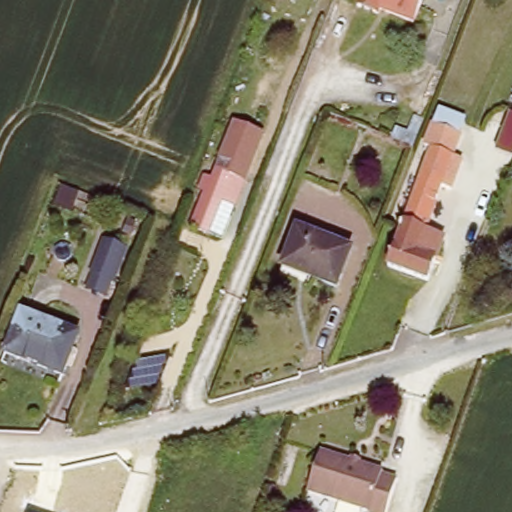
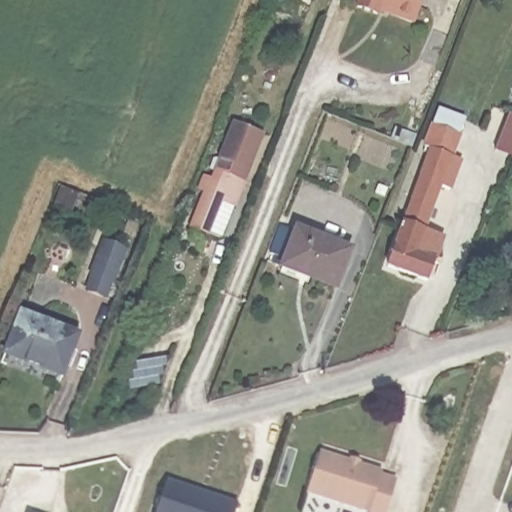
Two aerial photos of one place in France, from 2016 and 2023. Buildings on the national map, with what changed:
unchanged [(387,9),(385,15),(362,6),(365,0),(426,0),(418,21),(387,9)]
unchanged [(415,173),(438,111),(467,124),(445,185),(435,181),(415,173)]
unchanged [(232,177),(229,187),(210,180),(232,120),(265,133),(247,182),(232,177)]
unchanged [(383,268),(386,261),(382,259),(415,173),(435,181),(418,226),(437,233),(422,274),(397,265),(394,272),(383,268)]
unchanged [(198,230),(207,206),(201,203),(210,180),(229,187),(232,177),(247,182),(237,208),(225,240),(213,236),(198,230)]
unchanged [(355,251),(343,289),(283,270),(295,232),(355,251)]
unchanged [(111,284),(93,277),(107,243),(125,251),(111,284)]
unchanged [(7,356),(23,317),(80,339),(65,378),(7,356)]
unchanged [(387,470),(385,475),(402,480),(392,512),(374,512),(375,509),(314,491),(325,452),(387,470)]
new [(236,512),(159,512),(170,481),(239,503),(236,512)]

